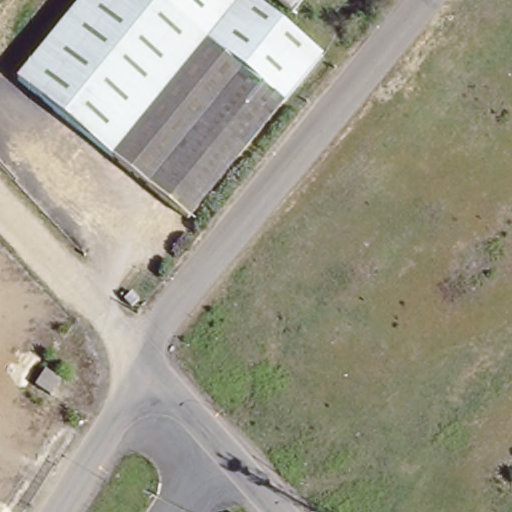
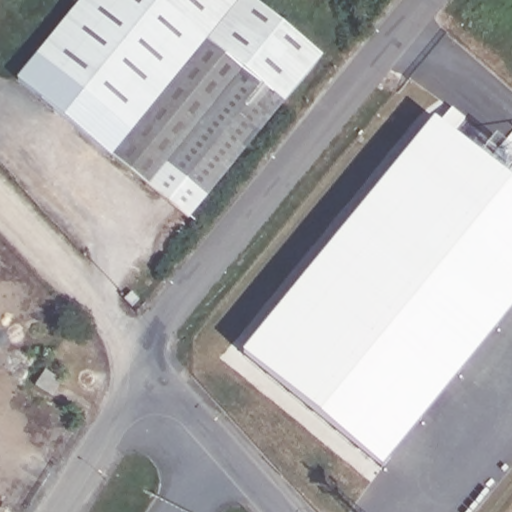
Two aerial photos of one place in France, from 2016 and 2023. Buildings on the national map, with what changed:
unchanged [(285,26),(323,58),(190,220),(90,138),(20,81),(87,0),(252,0),(285,26)]
demolished [(285,26),(252,0),(305,0),(285,26)]
new [(447,133),(512,185),(512,312),(382,470),(242,355),(434,121),(439,125),(451,109),(466,119),(447,133)]
unchanged [(42,369),(59,380),(50,395),(32,384),(42,369)]

